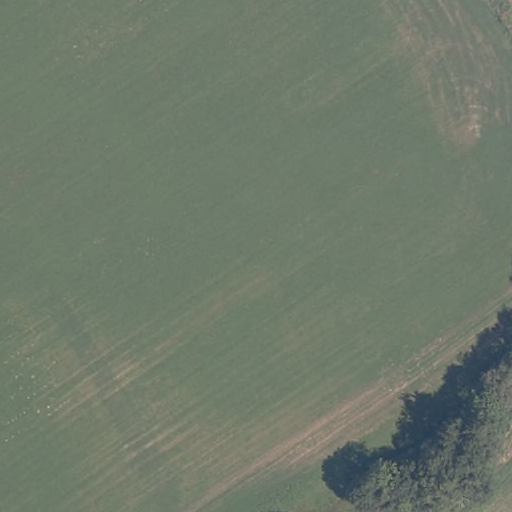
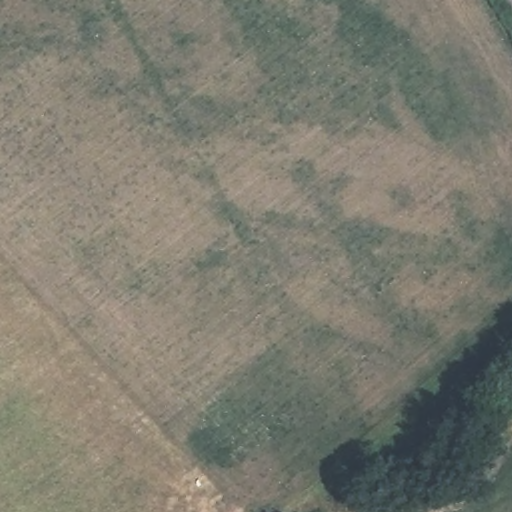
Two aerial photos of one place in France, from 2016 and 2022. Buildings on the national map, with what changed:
[]

